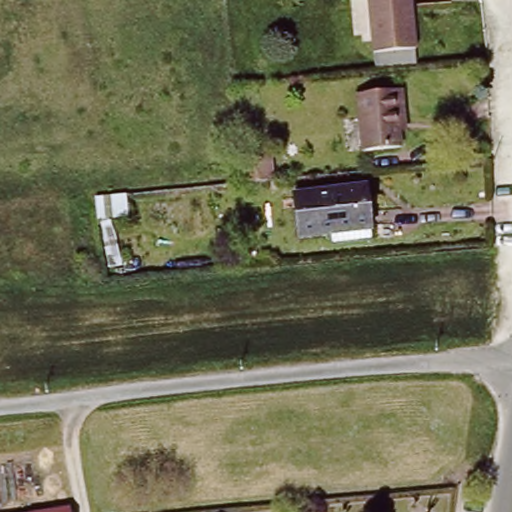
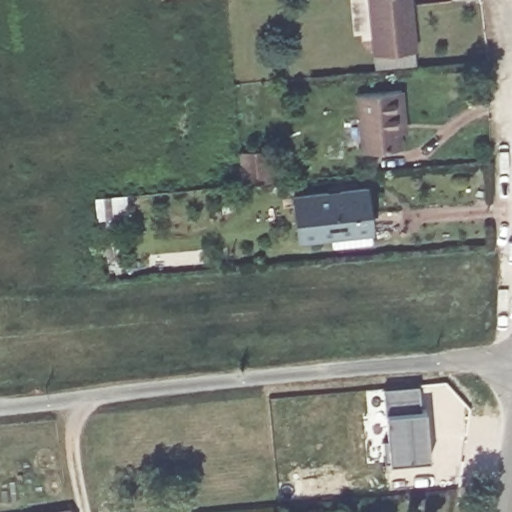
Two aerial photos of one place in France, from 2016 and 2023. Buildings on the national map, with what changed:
unchanged [(374,58),(370,0),(412,0),(416,54),(374,58)]
unchanged [(396,130),(398,150),(365,154),(359,98),(401,92),(405,123),(406,129),(396,130)]
unchanged [(242,150),(270,148),(273,179),(248,182),(245,182),(242,150)]
unchanged [(372,240),(331,244),(330,234),(299,235),(295,194),(295,192),(367,185),(367,188),(372,240)]
new [(392,437),(387,386),(422,383),(425,408),(429,407),(433,456),(388,460),(387,438),(392,437)]
unchanged [(66,511),(66,512),(57,512),(66,511)]

